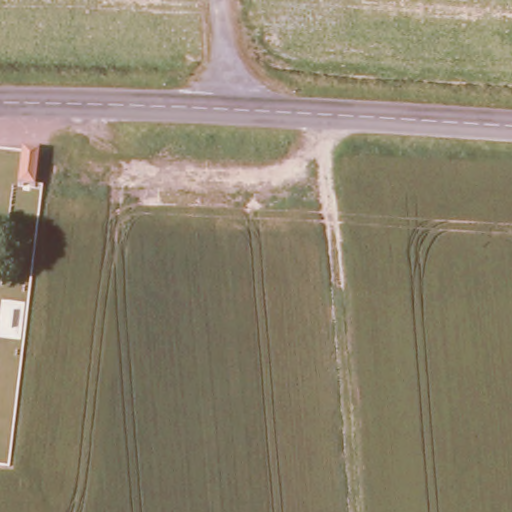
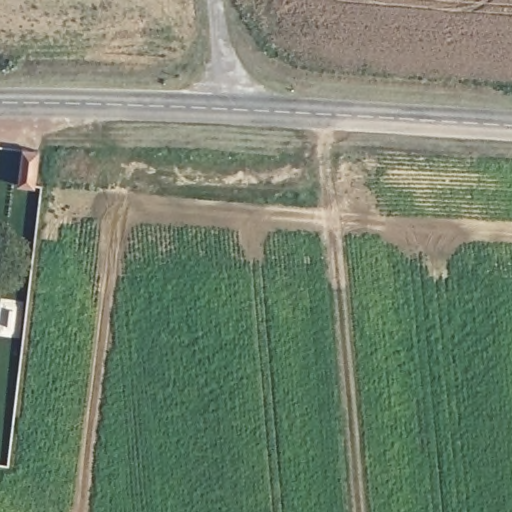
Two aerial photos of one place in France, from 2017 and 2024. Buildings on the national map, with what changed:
unchanged [(42,151),(37,188),(15,184),(22,149),(42,151)]

